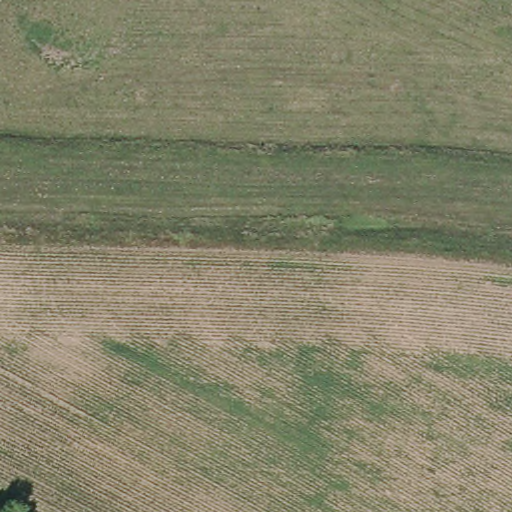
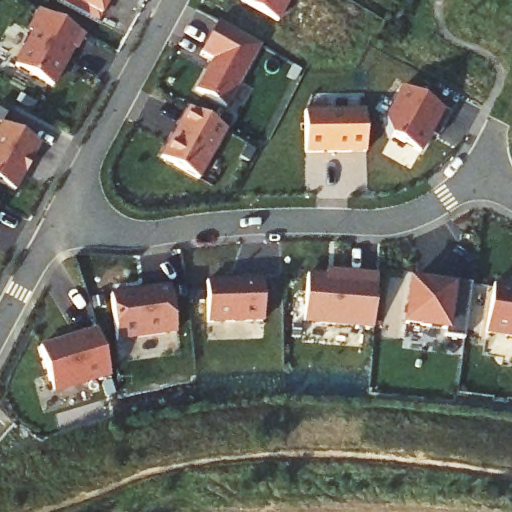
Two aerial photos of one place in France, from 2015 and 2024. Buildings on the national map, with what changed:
new [(70,0),(109,0),(101,18),(70,0)]
new [(240,1),(241,0),(290,0),(278,23),(240,1)]
new [(36,35),(32,32),(44,12),(87,36),(79,51),(77,49),(56,87),(19,66),(36,35)]
new [(211,70),(215,69),(219,64),(215,62),(217,59),(205,53),(222,23),(264,46),(230,107),(200,90),(211,70)]
new [(422,150),(391,134),(385,116),(399,89),(445,111),(422,150)]
new [(177,135),(180,137),(185,127),(183,125),(192,109),(229,130),(202,179),(165,158),(177,135)]
new [(366,154),(306,155),(305,113),(365,111),(366,154)]
new [(16,192),(0,184),(0,126),(1,124),(40,145),(16,192)]
new [(298,269),(350,274),(352,269),(366,270),(363,323),(295,315),(298,269)]
new [(192,279),(225,282),(226,273),(251,274),(250,324),(195,320),(192,279)]
new [(432,288),(433,282),(470,287),(462,339),(444,337),(442,346),(405,340),(411,284),(432,288)]
new [(512,287),(512,339),(485,335),(492,284),(512,287)]
new [(143,298),(145,300),(155,299),(155,297),(172,294),(178,339),(118,347),(112,303),(143,298)]
new [(53,395),(38,346),(95,329),(110,378),(53,395)]

